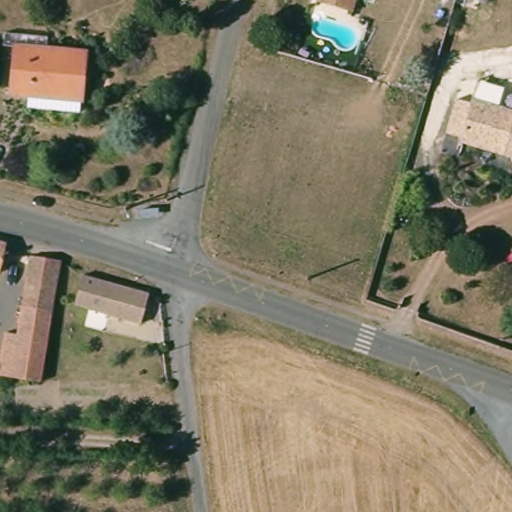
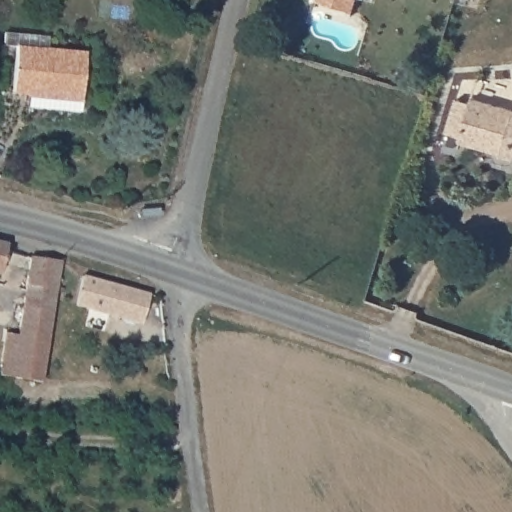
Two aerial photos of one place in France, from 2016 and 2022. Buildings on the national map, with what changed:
unchanged [(10,43),(11,30),(52,33),(51,47),(87,50),(82,108),(27,103),(28,90),(13,89),(17,44),(10,43)]
unchanged [(460,114),(465,98),(477,102),(480,93),(512,104),(512,153),(466,138),(472,118),(460,114)]
unchanged [(7,240),(1,268),(0,268),(0,239),(7,240)]
unchanged [(18,334),(32,255),(63,262),(41,381),(37,381),(0,374),(0,363),(6,332),(18,334)]
unchanged [(148,294),(141,325),(76,304),(84,275),(148,294)]

